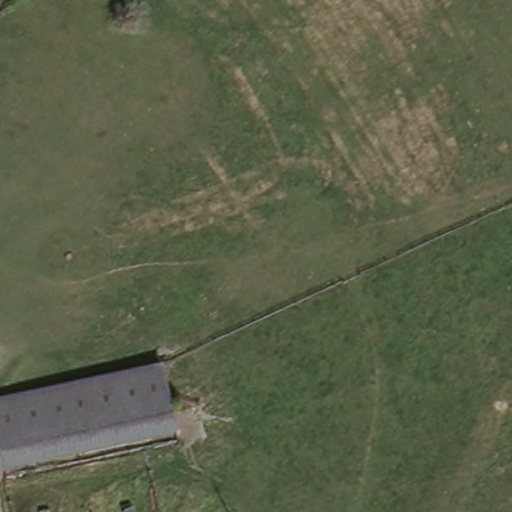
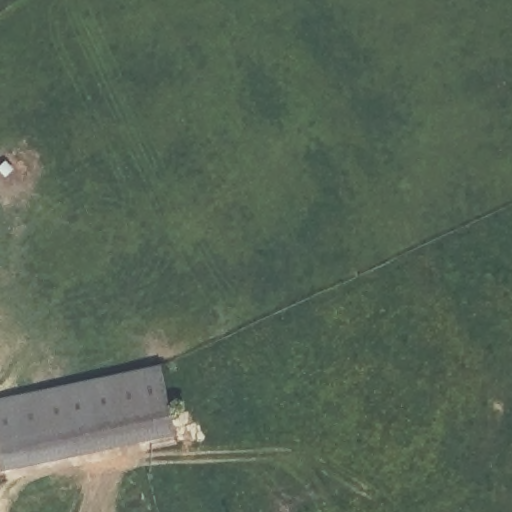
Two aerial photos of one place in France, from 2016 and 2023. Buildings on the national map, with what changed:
unchanged [(164,371),(177,439),(0,466),(0,399),(164,371)]

